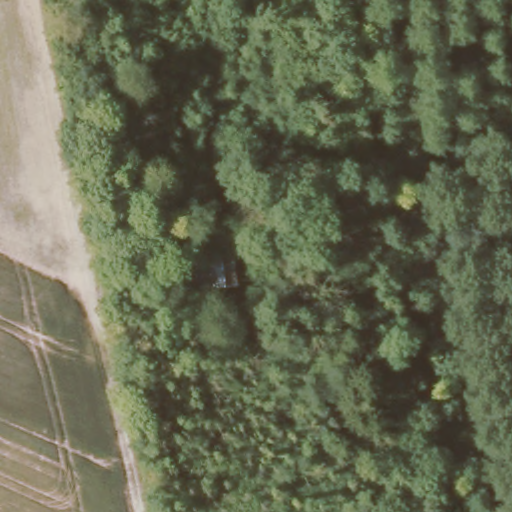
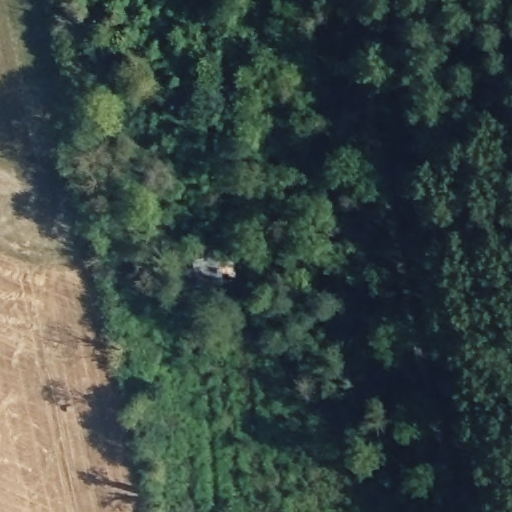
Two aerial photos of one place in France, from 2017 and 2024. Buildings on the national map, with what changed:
unchanged [(242,287),(185,291),(183,262),(239,257),(242,287)]

